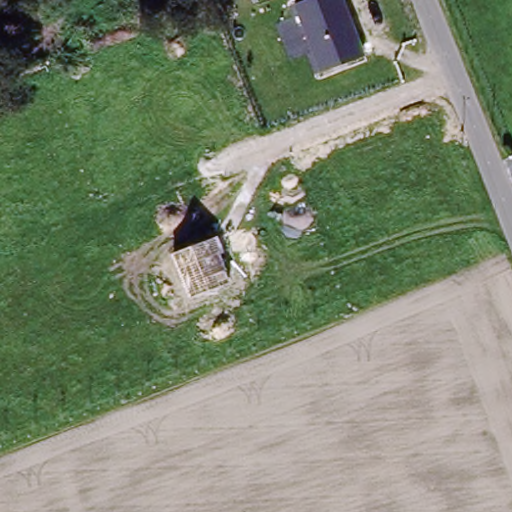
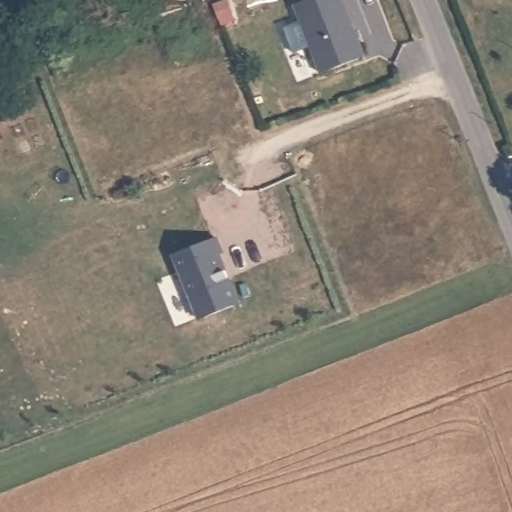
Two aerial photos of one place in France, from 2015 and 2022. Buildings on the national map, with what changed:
unchanged [(341,0),(363,58),(319,74),(293,6),(309,0),(341,0)]
new [(241,306),(202,321),(176,256),(218,239),(226,255),(221,257),(241,305),(241,306)]

